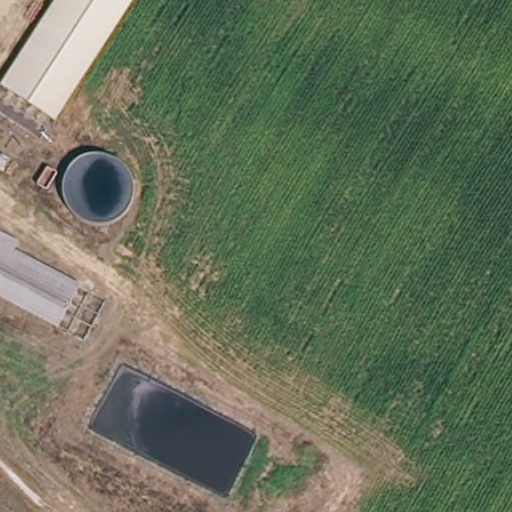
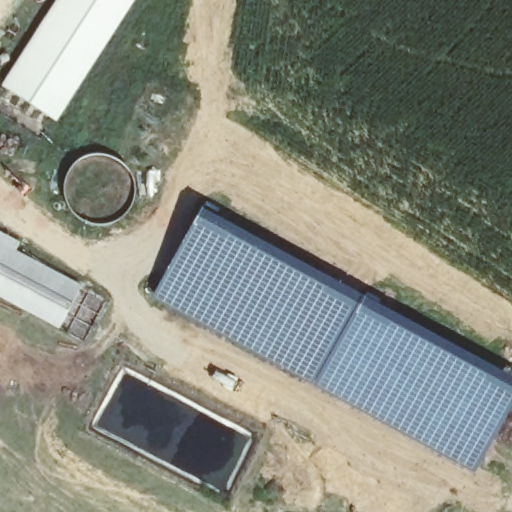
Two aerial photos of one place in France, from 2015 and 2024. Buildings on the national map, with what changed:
unchanged [(1,102),(60,0),(130,0),(55,132),(1,102)]
new [(512,389),(512,403),(473,473),(151,298),(194,215),(512,389)]
unchanged [(0,299),(0,236),(15,244),(11,252),(79,286),(59,327),(0,299)]

